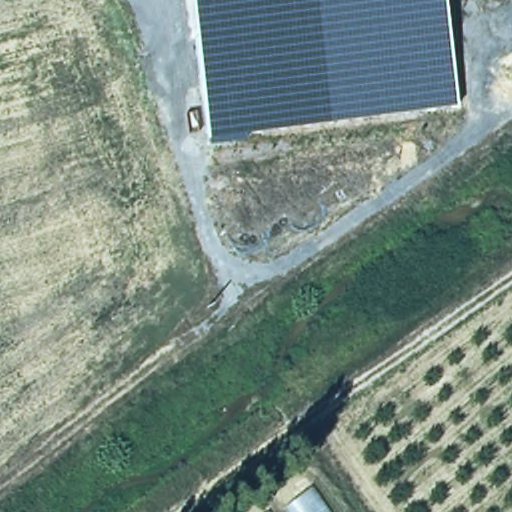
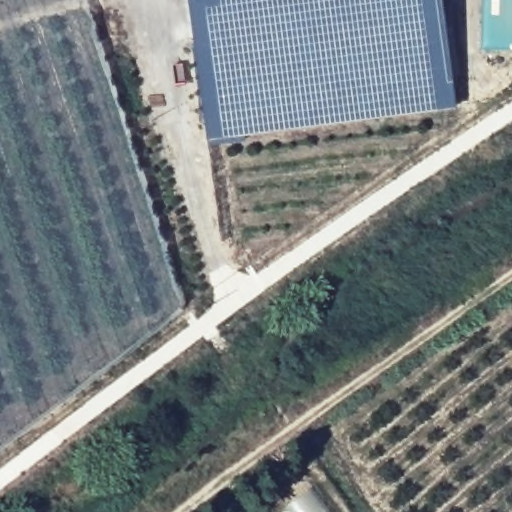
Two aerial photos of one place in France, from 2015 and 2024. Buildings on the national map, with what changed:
unchanged [(208,136),(191,0),(444,0),(457,103),(208,136)]
unchanged [(304,487),(323,512),(270,512),(304,487)]

